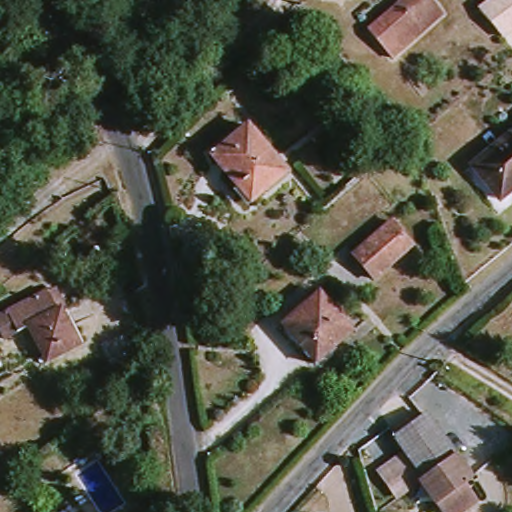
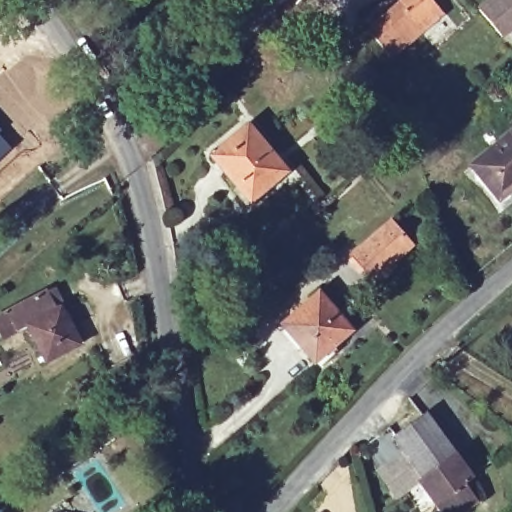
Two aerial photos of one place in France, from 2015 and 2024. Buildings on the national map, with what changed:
unchanged [(397,54),(375,27),(410,0),(437,0),(446,12),(397,54)]
unchanged [(512,0),(512,33),(504,39),(477,8),(488,0),(512,0)]
unchanged [(290,172),(256,202),(216,158),(250,126),(290,172)]
new [(1,129),(0,130),(0,128),(1,129)]
new [(12,148),(0,159),(0,135),(12,148)]
unchanged [(475,169),(512,136),(512,198),(505,204),(475,169)]
unchanged [(419,244),(378,277),(358,254),(399,220),(419,244)]
unchanged [(0,323),(0,317),(10,311),(25,304),(51,288),(60,306),(64,305),(85,343),(53,359),(32,321),(20,327),(7,336),(0,323)]
unchanged [(359,332),(318,367),(287,327),(325,293),(359,332)]
unchanged [(470,512),(429,512),(428,510),(433,508),(396,441),(431,421),(468,488),(460,493),(470,512)]

